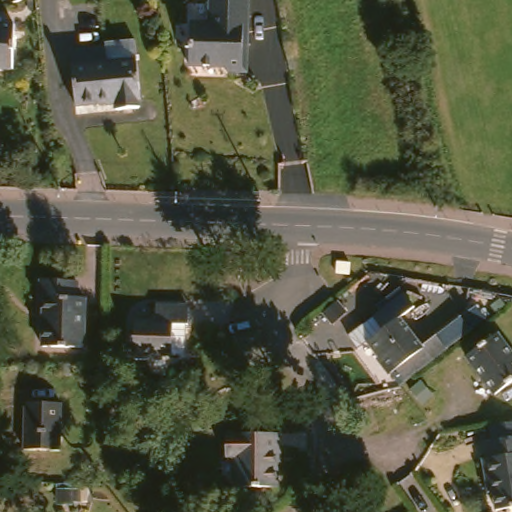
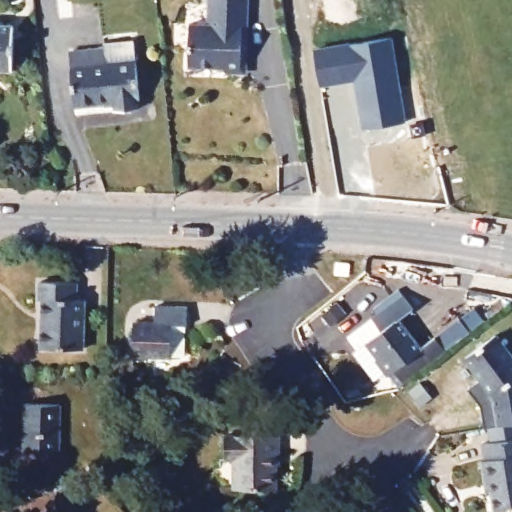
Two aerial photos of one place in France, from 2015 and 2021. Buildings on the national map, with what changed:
unchanged [(209,16),(210,0),(248,0),(247,39),(241,44),(240,65),(227,65),(222,60),(184,58),(186,15),(209,16)]
unchanged [(13,72),(0,72),(0,26),(14,26),(13,72)]
new [(386,41),(400,125),(359,132),(351,82),(316,88),(310,53),(386,41)]
unchanged [(105,50),(107,64),(139,61),(143,100),(140,102),(140,110),(113,111),(110,102),(73,104),(69,52),(105,50)]
unchanged [(73,281),(72,297),(83,297),(80,348),(39,347),(41,299),(36,299),(37,281),(73,281)]
unchanged [(395,374),(387,364),(383,367),(370,350),(373,347),(362,331),(381,317),(372,303),(399,282),(412,298),(398,311),(416,335),(426,328),(450,310),(460,322),(436,341),(411,360),(411,361),(395,374)]
unchanged [(161,352),(161,357),(122,357),(124,323),(141,322),(141,301),(177,301),(177,321),(173,321),(173,352),(161,352)]
unchanged [(512,362),(512,381),(492,394),(467,354),(496,335),(512,362)]
unchanged [(61,405),(60,452),(25,452),(25,403),(61,405)]
unchanged [(499,476),(493,476),(492,457),(498,457),(497,440),(507,440),(507,425),(512,424),(512,512),(512,510),(501,510),(499,476)]
unchanged [(281,430),(281,460),(277,463),(277,483),(236,482),(235,456),(226,456),(227,429),(281,430)]

